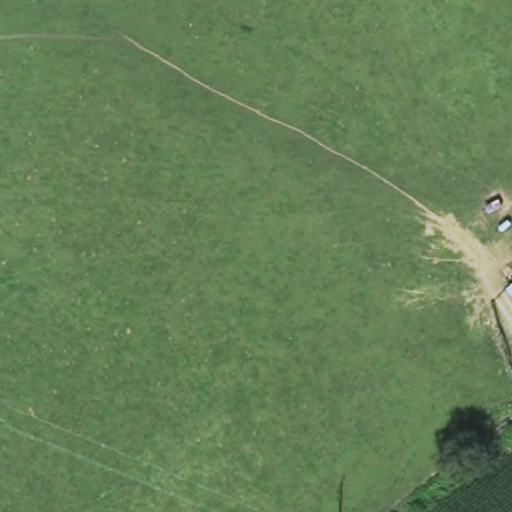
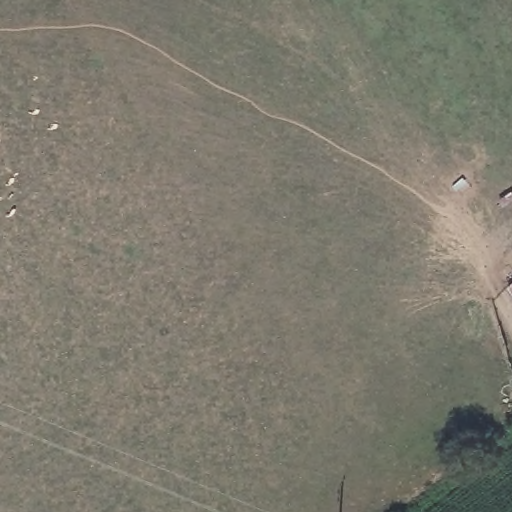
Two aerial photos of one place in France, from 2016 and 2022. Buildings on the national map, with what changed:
unchanged [(502,290),(512,282),(512,302),(502,290)]

